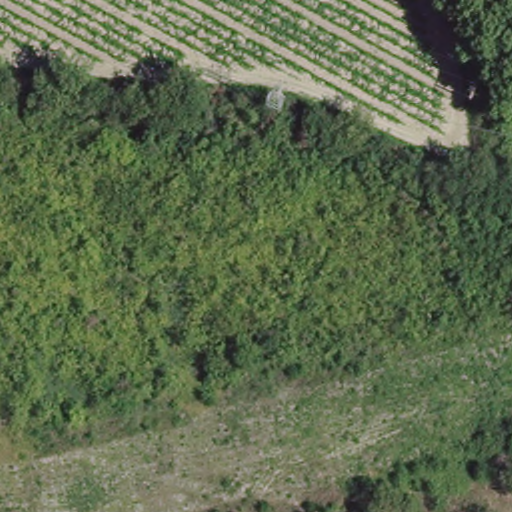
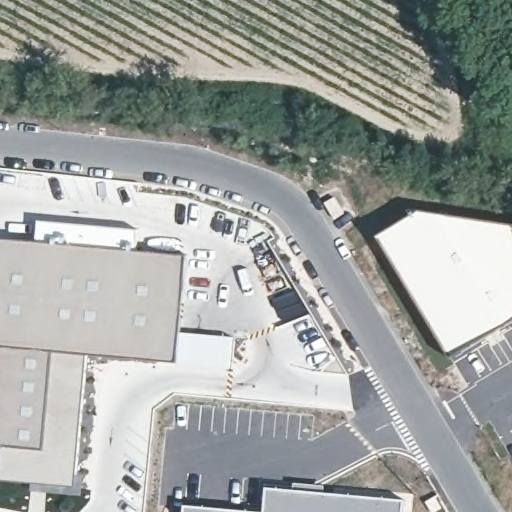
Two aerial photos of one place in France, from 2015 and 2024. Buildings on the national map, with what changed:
new [(381,237),(421,213),(512,226),(512,322),(452,358),(381,237)]
new [(137,252),(37,243),(39,222),(138,231),(137,252)]
new [(175,362),(50,351),(42,451),(0,446),(0,239),(186,257),(175,362)]
new [(231,369),(175,362),(178,332),(234,338),(231,369)]
new [(77,475),(84,476),(82,496),(32,492),(33,484),(0,481),(3,447),(42,451),(50,351),(87,354),(77,475)]
new [(403,512),(265,512),(267,489),(404,502),(403,512)]
new [(187,506),(245,512),(186,512),(187,506)]

